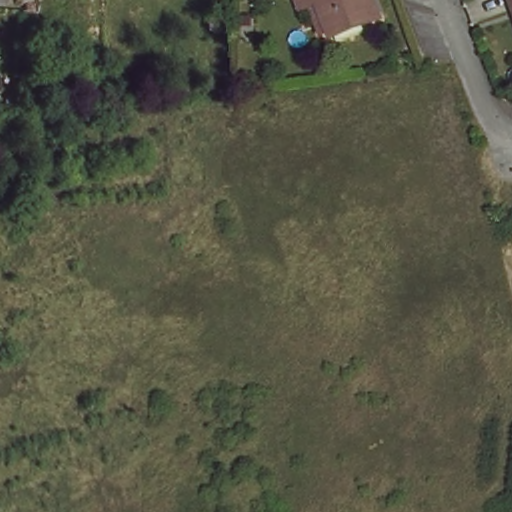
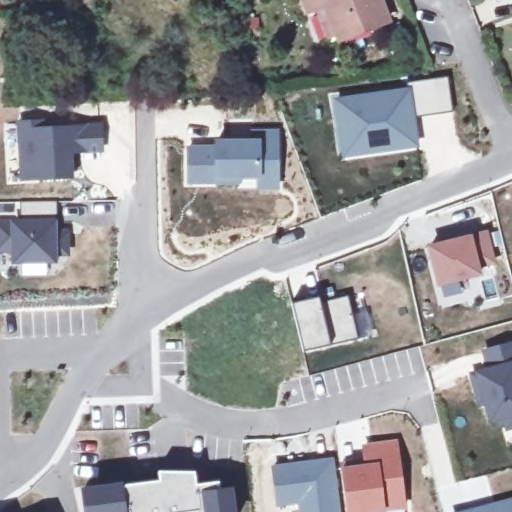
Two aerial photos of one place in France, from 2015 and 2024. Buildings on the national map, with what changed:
unchanged [(383,13),(337,30),(330,9),(309,16),(303,0),(379,0),(383,13)]
new [(408,90),(407,82),(447,77),(451,112),(413,117),(416,145),(344,154),(336,100),(408,90)]
new [(43,121),(43,129),(100,125),(101,150),(69,151),(70,176),(21,179),(19,123),(43,121)]
new [(216,147),(216,141),(253,141),(253,132),(277,132),(276,188),(238,187),(238,181),(188,182),(188,149),(216,147)]
new [(56,201),(58,223),(54,223),(54,232),(66,232),(66,253),(54,254),(54,260),(13,261),(14,222),(22,222),(21,201),(56,201)]
new [(485,232),(492,261),(476,265),(478,272),(439,282),(429,246),(485,232)]
new [(314,297),(315,302),(347,295),(358,338),(303,351),(291,302),(314,297)]
new [(512,343),(512,425),(507,426),(504,415),(489,418),(485,401),(479,403),(471,374),(489,368),(484,350),(512,343)]
new [(364,446),(394,443),(403,506),(366,511),(367,512),(346,512),(340,465),(365,461),(364,446)]
new [(341,512),(298,512),(296,503),(276,506),(271,464),(334,455),(341,512)]
new [(159,470),(193,470),(196,483),(218,480),(220,491),(231,490),(233,512),(86,512),(83,490),(161,480),(159,470)]
new [(466,512),(512,500),(512,512),(466,512)]

